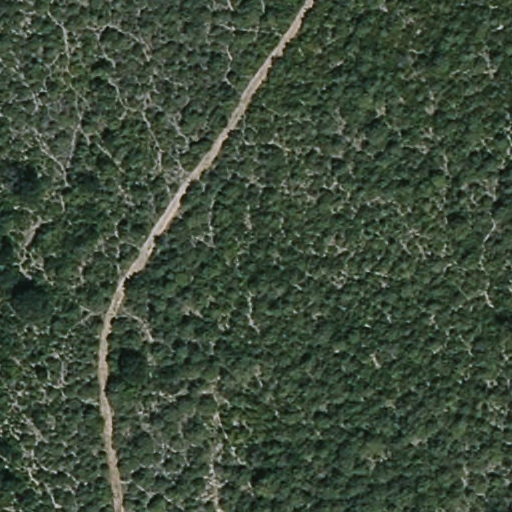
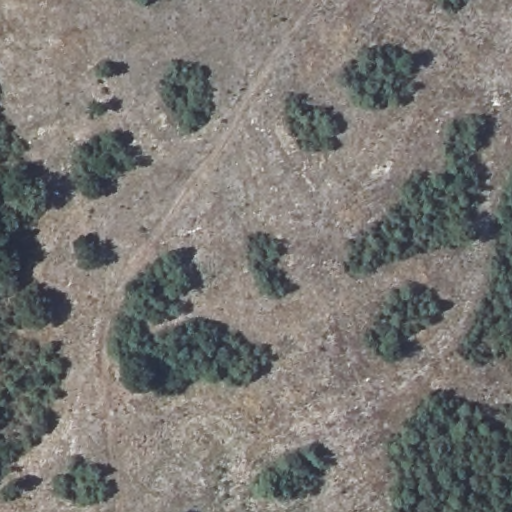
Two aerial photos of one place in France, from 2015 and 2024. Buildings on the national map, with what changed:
[]

